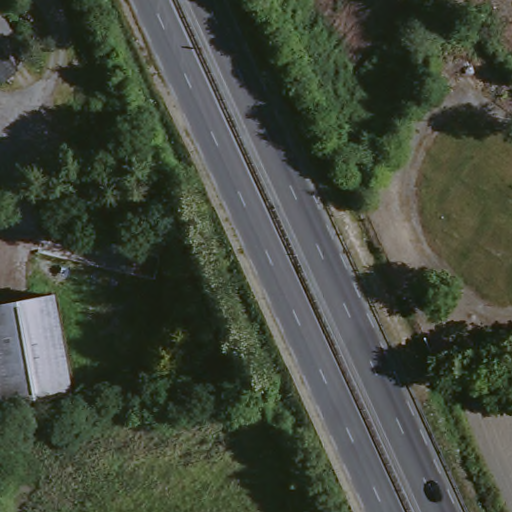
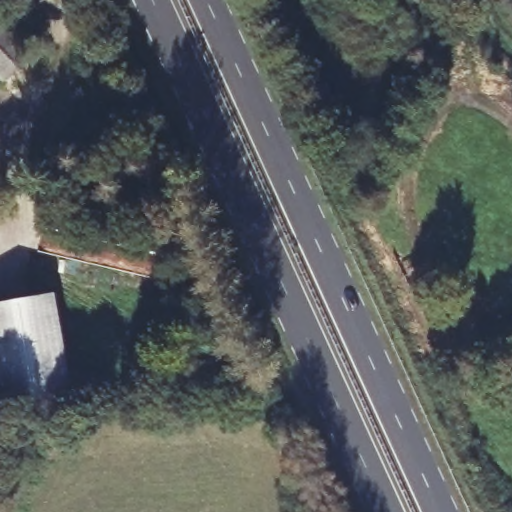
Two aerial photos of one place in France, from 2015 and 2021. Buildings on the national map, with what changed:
unchanged [(15,72),(0,58),(0,0),(1,0),(45,40),(15,72)]
unchanged [(0,406),(0,300),(60,289),(76,389),(0,406)]

